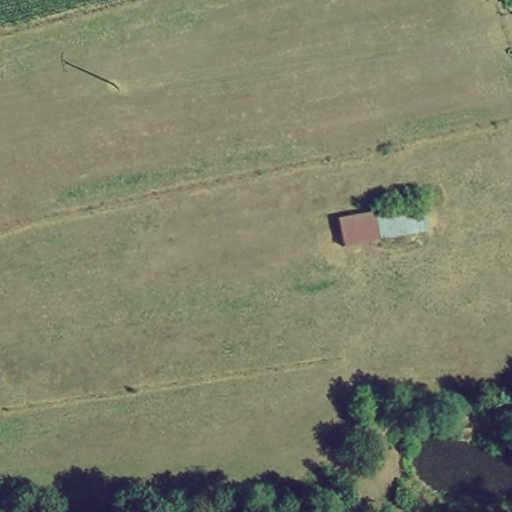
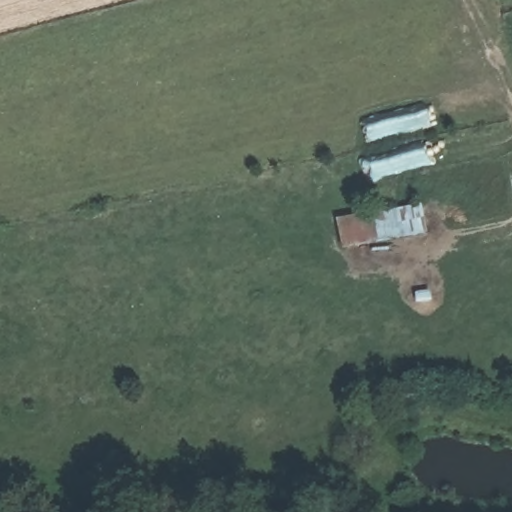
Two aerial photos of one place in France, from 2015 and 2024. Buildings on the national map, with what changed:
unchanged [(426,236),(343,249),(339,220),(424,201),(426,236)]

